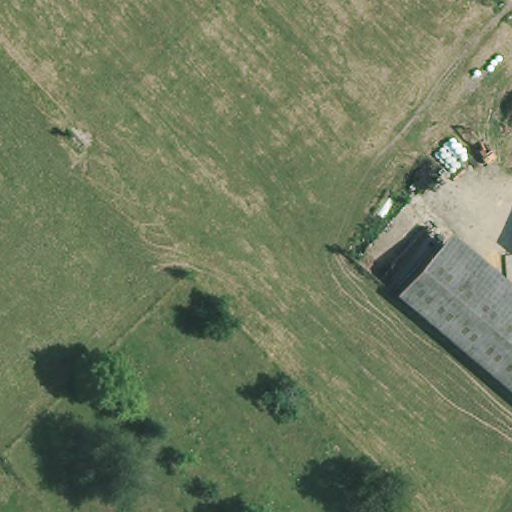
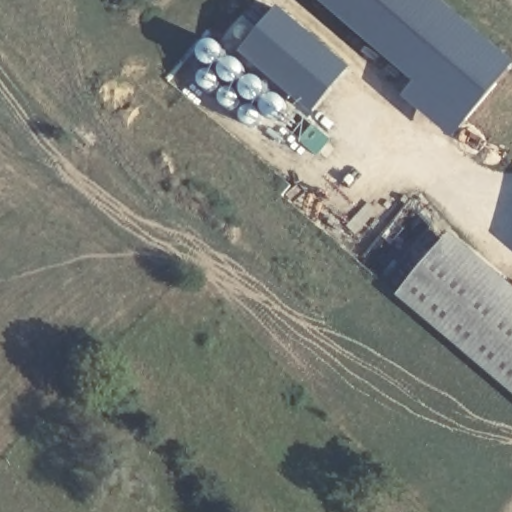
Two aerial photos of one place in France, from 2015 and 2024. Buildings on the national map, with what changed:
new [(321,0),(443,0),(512,59),(512,75),(455,141),(405,97),(416,83),(321,0)]
new [(280,7),(352,69),(308,120),(285,93),(238,51),(280,7)]
new [(311,123),(330,140),(315,156),(297,140),(311,123)]
new [(451,232),(512,284),(512,322),(431,255),(451,232)]
unchanged [(512,322),(512,399),(394,300),(431,255),(512,322)]

